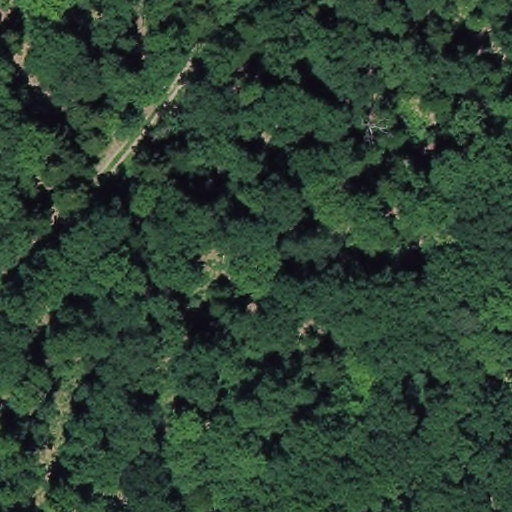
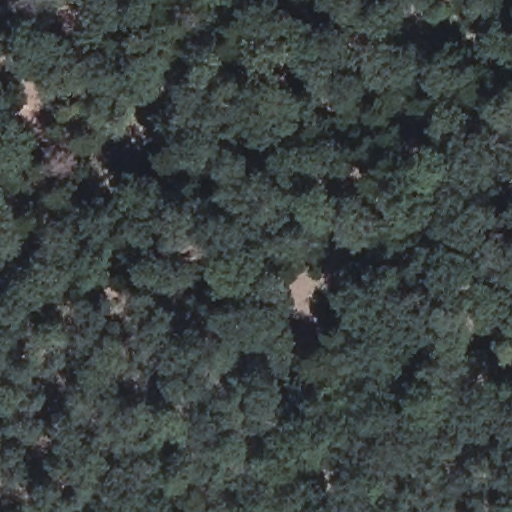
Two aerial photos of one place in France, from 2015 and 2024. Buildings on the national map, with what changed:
[]

